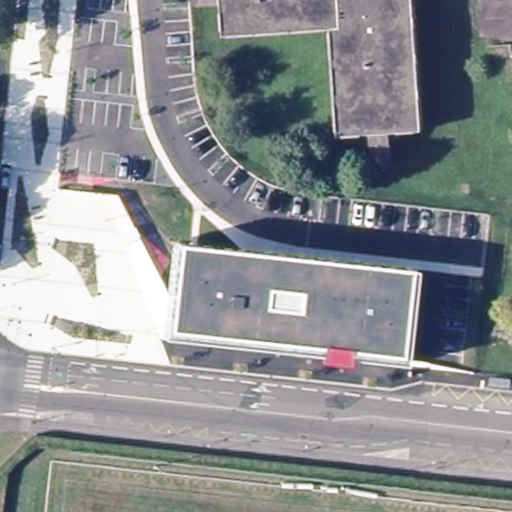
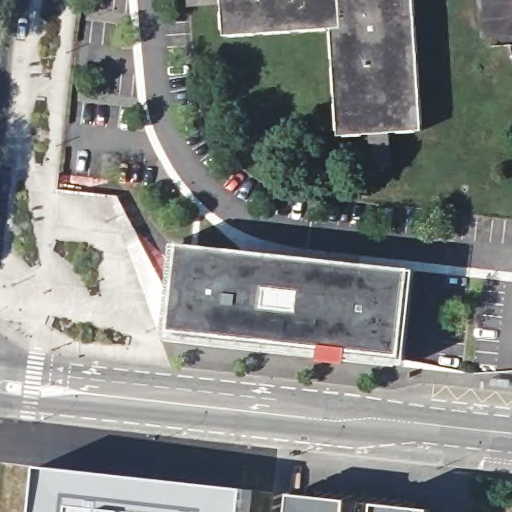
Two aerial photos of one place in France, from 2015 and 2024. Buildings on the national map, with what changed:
unchanged [(372,137),(342,140),(335,32),(226,38),(224,8),(190,10),(190,0),(412,0),(422,132),(393,136),(395,167),(374,169),(372,137)]
unchanged [(415,270),(404,365),(347,358),(346,363),(319,361),(320,354),(164,337),(173,244),(415,270)]
new [(36,465),(245,488),(242,512),(33,512),(36,465)]
new [(289,494),(430,510),(430,512),(287,512),(289,494)]

